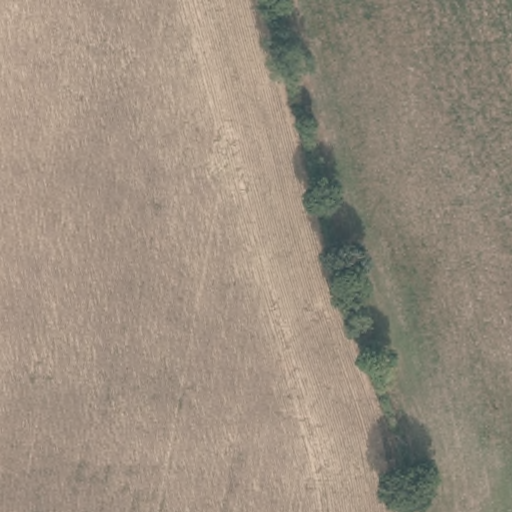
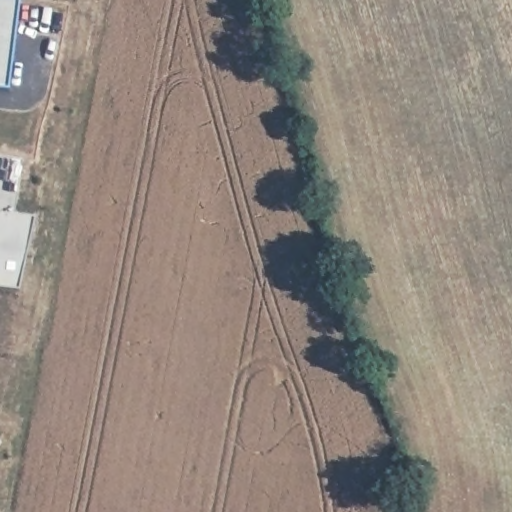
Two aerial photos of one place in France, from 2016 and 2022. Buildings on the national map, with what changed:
new [(20,0),(9,92),(0,91),(0,0),(16,0),(20,0)]
new [(35,220),(19,292),(0,290),(0,216),(35,220)]

